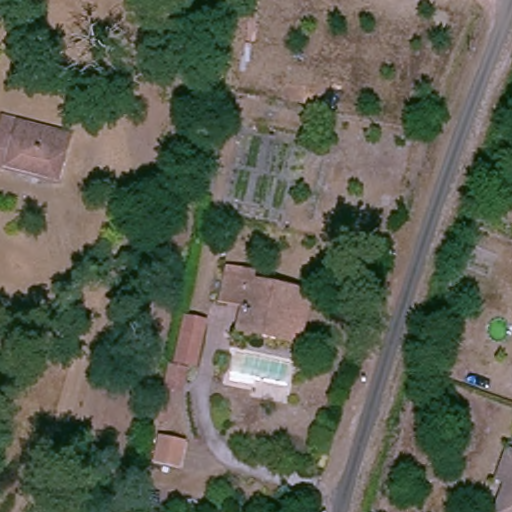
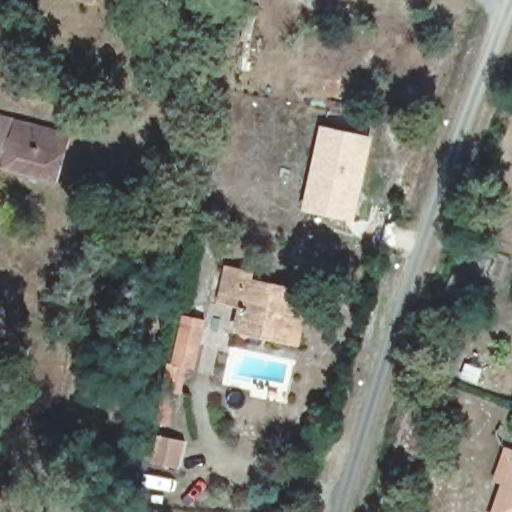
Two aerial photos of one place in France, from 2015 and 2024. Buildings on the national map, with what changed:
unchanged [(0,119),(62,136),(52,179),(7,166),(4,172),(0,171),(0,119)]
new [(320,123),(374,135),(354,221),(300,209),(320,123)]
unchanged [(240,318),(242,306),(219,299),(224,268),(250,274),(249,284),(305,296),(297,341),(276,338),(236,328),(240,318)]
unchanged [(175,357),(177,341),(181,316),(200,320),(197,342),(193,364),(185,391),(180,391),(169,423),(157,421),(167,359),(174,361),(175,357)]
unchanged [(180,460),(155,455),(162,428),(185,433),(180,460)]
unchanged [(509,485),(499,483),(499,481),(508,455),(512,457),(512,512),(500,512),(509,485)]

